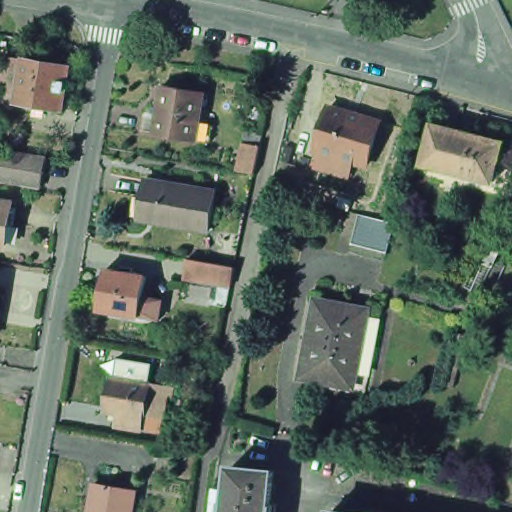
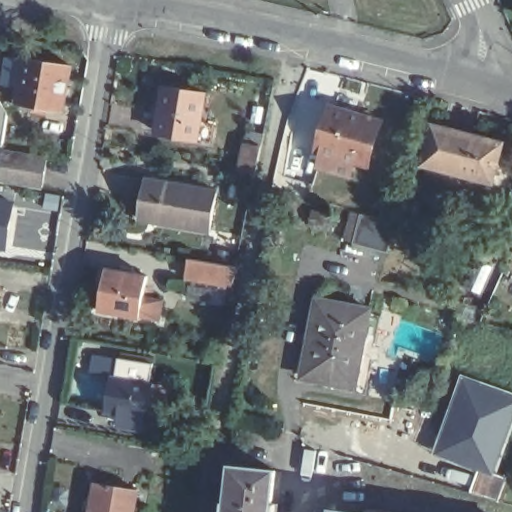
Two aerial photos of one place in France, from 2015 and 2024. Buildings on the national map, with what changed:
unchanged [(66,68),(58,112),(12,104),(14,95),(0,93),(0,70),(2,59),(20,62),(20,60),(66,68)]
unchanged [(198,137),(158,130),(161,115),(157,115),(157,111),(152,110),(153,103),(159,104),(162,82),(207,90),(202,119),(216,121),(212,139),(198,137)]
unchanged [(9,114),(3,148),(0,147),(0,100),(9,114)]
unchanged [(317,166),(322,152),(317,150),(330,107),(381,123),(368,166),(353,162),(349,176),(317,166)]
unchanged [(435,131),(503,150),(493,188),(425,171),(435,131)]
unchanged [(244,140),(260,142),(255,170),(243,168),(239,167),(244,140)]
unchanged [(0,182),(0,170),(3,152),(48,161),(46,175),(43,190),(0,182)]
unchanged [(151,171),(221,186),(214,223),(144,209),(151,171)]
unchanged [(5,252),(0,251),(0,208),(12,210),(5,252)]
unchanged [(353,240),(360,211),(394,220),(386,249),(353,240)]
unchanged [(482,248),(500,252),(492,269),(480,296),(464,290),(476,262),(482,248)]
unchanged [(212,285),(186,280),(190,260),(216,264),(230,266),(235,267),(231,287),(212,285)]
unchanged [(140,313),(101,306),(108,267),(147,275),(143,294),(163,297),(162,303),(160,317),(140,313)]
unchanged [(5,288),(0,310),(0,287),(5,288)]
unchanged [(318,385),(320,378),(296,374),(311,297),(363,307),(362,311),(375,313),(360,391),(318,385)]
unchanged [(437,385),(453,330),(470,335),(454,390),(437,385)]
unchanged [(147,415),(145,423),(126,420),(127,411),(112,408),(118,373),(155,381),(172,384),(167,415),(150,412),(150,415),(147,415)]
new [(512,434),(497,475),(508,480),(500,505),(468,496),(476,472),(433,455),(460,375),(512,394),(512,434)]
unchanged [(280,472),(275,512),(233,512),(237,467),(280,472)]
unchanged [(138,491),(135,512),(92,512),(97,484),(138,491)]
unchanged [(322,512),(322,511),(325,512),(322,512)]
unchanged [(371,512),(368,512),(368,511),(371,512)]

